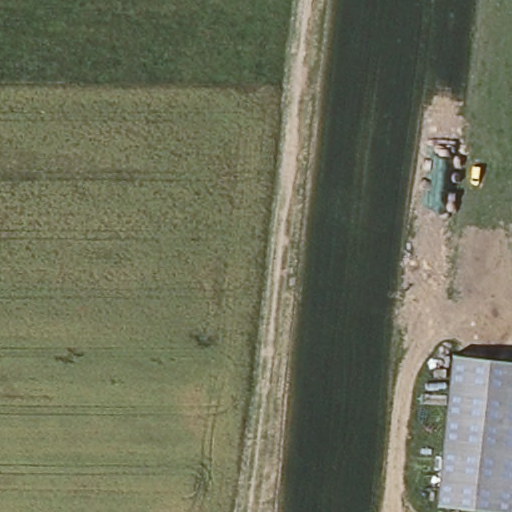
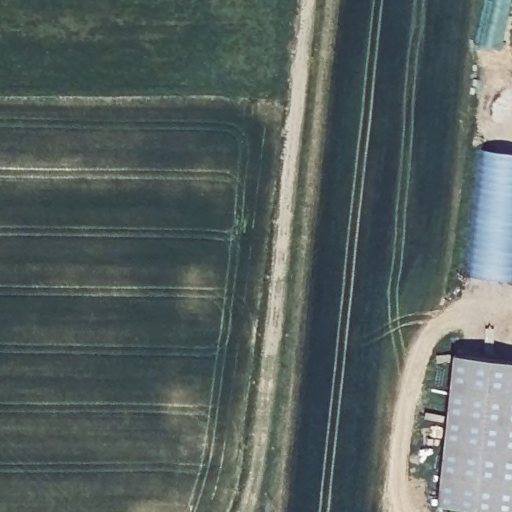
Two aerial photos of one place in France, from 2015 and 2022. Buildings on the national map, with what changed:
new [(512,152),(512,281),(467,275),(480,149),(512,152)]
unchanged [(512,360),(512,510),(439,504),(454,353),(512,360)]

